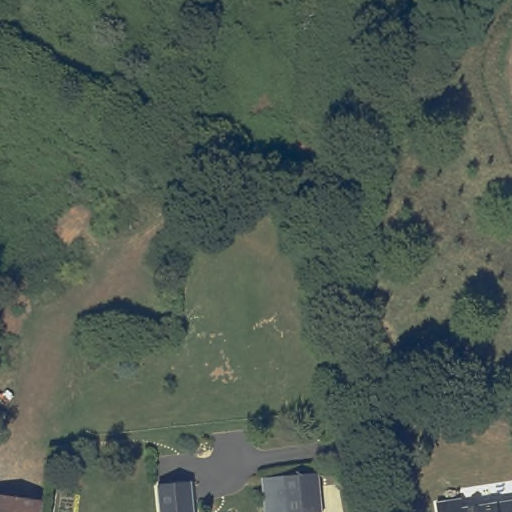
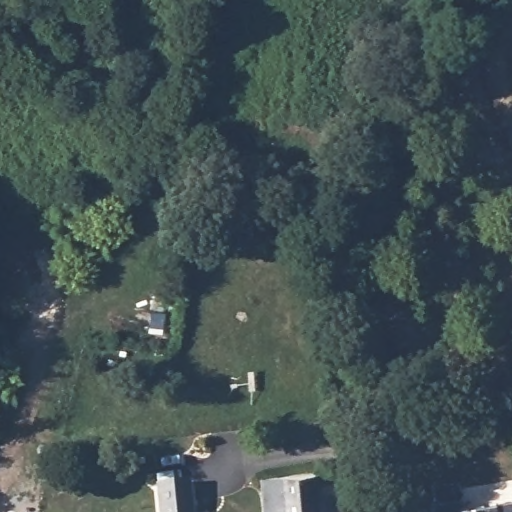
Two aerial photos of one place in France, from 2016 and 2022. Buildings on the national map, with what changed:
unchanged [(325,478),(329,512),(274,512),(271,483),(325,478)]
unchanged [(192,512),(158,512),(156,485),(190,482),(192,512)]
unchanged [(47,512),(0,512),(0,494),(48,501),(47,512)]
unchanged [(461,498),(463,507),(512,499),(512,512),(438,512),(436,502),(461,498)]

